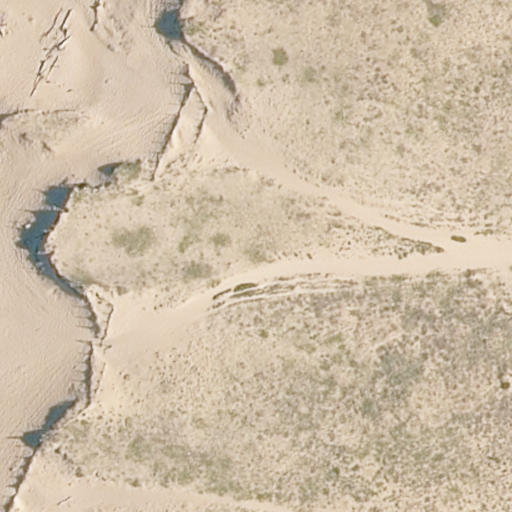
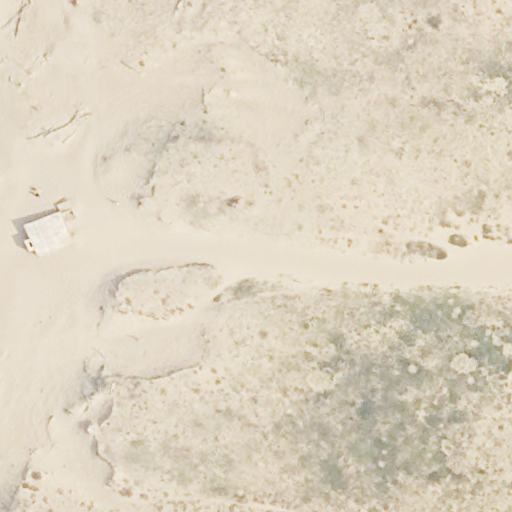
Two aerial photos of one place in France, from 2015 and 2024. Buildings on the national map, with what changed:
[]

